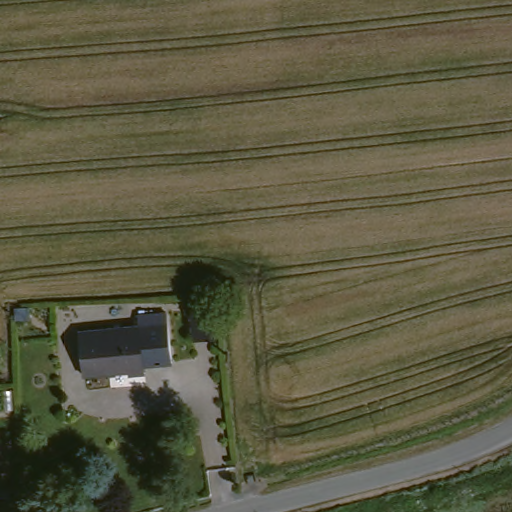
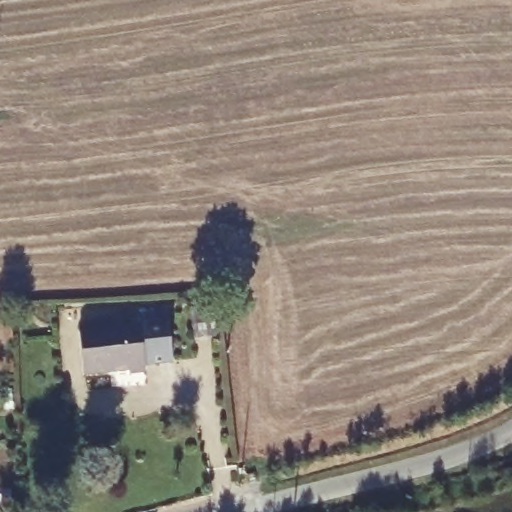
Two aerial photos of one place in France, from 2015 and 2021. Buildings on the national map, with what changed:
unchanged [(222,300),(224,339),(208,340),(206,301),(222,300)]
unchanged [(144,326),(145,316),(174,316),(173,367),(144,367),(144,375),(128,375),(128,371),(84,371),(84,326),(144,326)]

